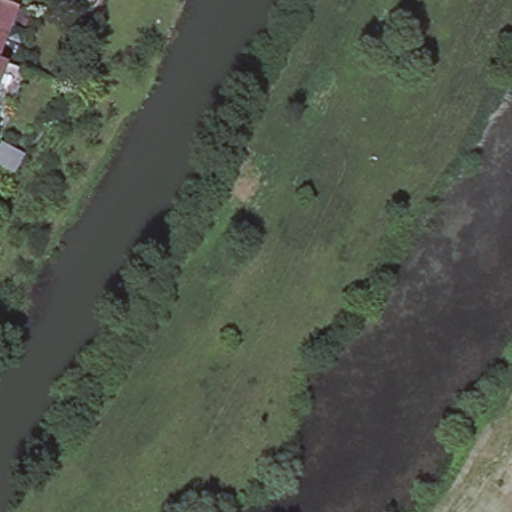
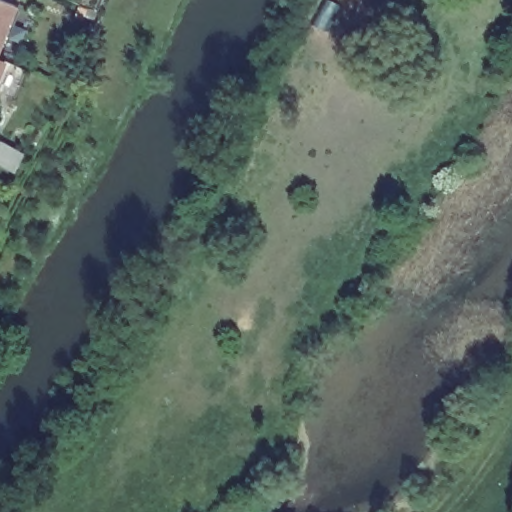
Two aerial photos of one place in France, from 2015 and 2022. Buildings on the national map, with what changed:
unchanged [(12,0),(22,4),(2,56),(0,56),(0,0),(12,0)]
unchanged [(0,88),(0,56),(2,56),(11,60),(0,88)]

